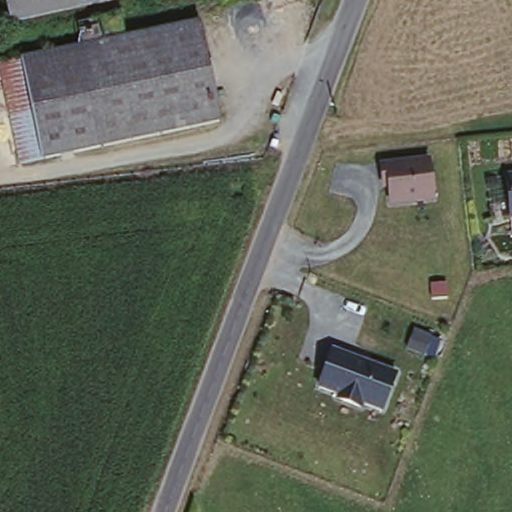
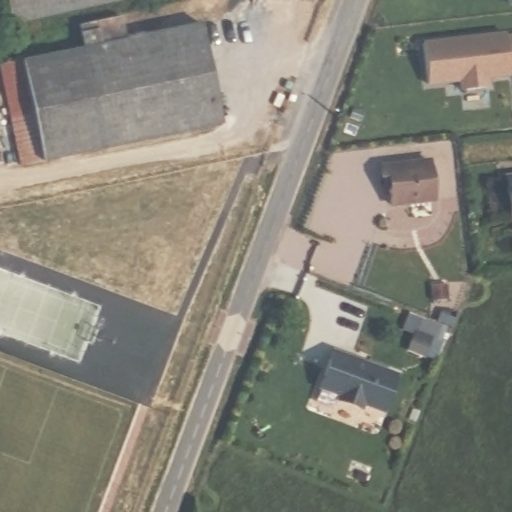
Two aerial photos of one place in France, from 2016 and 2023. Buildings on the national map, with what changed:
unchanged [(9,21),(4,0),(105,0),(9,21)]
unchanged [(114,16),(118,38),(198,22),(220,123),(41,156),(20,57),(80,45),(76,23),(114,16)]
new [(512,33),(512,70),(482,73),(483,82),(459,87),(458,75),(426,78),(422,41),(512,33)]
unchanged [(20,160),(0,69),(0,61),(20,57),(41,156),(20,160)]
unchanged [(436,203),(388,209),(386,190),(380,190),(377,163),(430,157),(436,203)]
unchanged [(510,217),(505,175),(512,174),(512,217),(510,217)]
unchanged [(399,374),(382,417),(316,388),(333,349),(399,374)]

